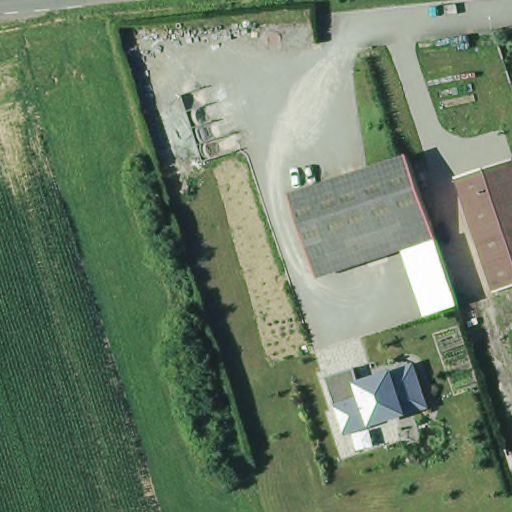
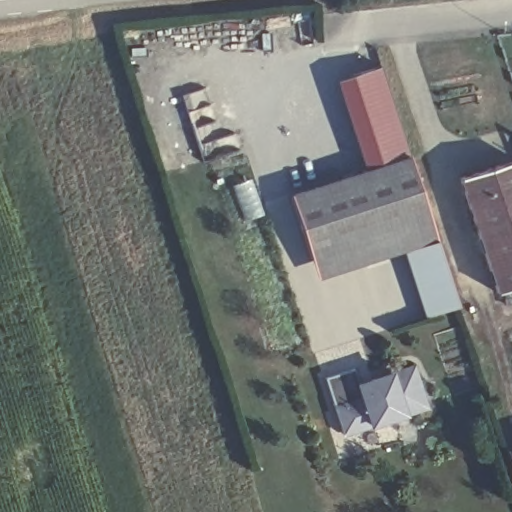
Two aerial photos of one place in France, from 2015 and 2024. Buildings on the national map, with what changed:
new [(370,171),(345,79),(382,66),(411,157),(370,171)]
unchanged [(432,221),(312,261),(292,197),(370,171),(411,157),(432,221)]
unchanged [(512,172),(512,298),(500,302),(462,190),(512,172)]
unchanged [(460,305),(423,317),(402,251),(317,278),(312,261),(432,221),(460,305)]
unchanged [(353,369),(357,381),(415,365),(430,411),(342,436),(325,377),(353,369)]
unchanged [(507,457),(512,455),(512,471),(507,457)]

